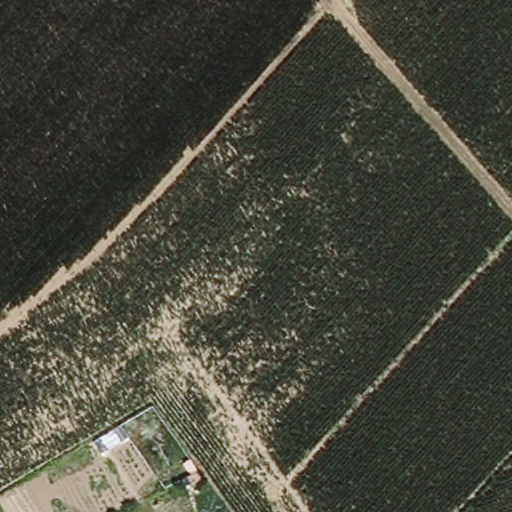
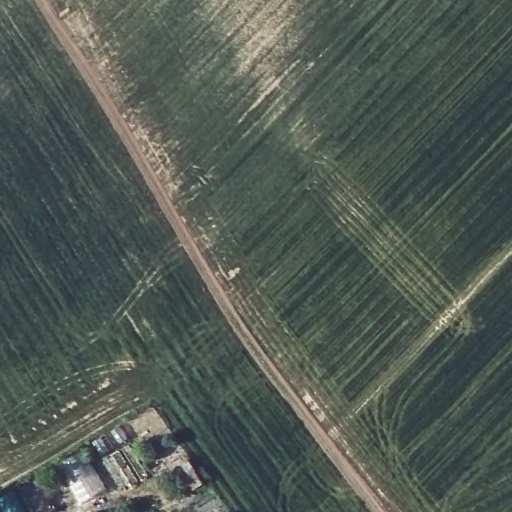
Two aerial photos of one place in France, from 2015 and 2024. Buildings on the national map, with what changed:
[]

